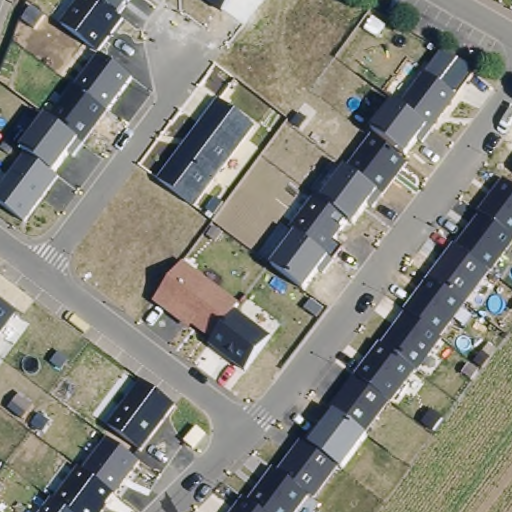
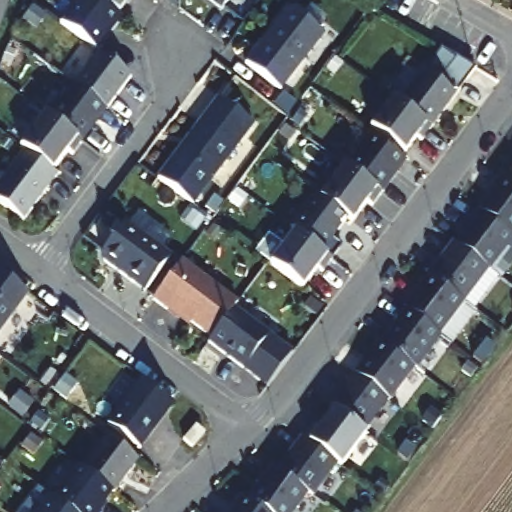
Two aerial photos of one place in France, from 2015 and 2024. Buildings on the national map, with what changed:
unchanged [(123,18),(98,52),(62,24),(79,0),(131,0),(119,15),(123,18)]
unchanged [(205,0),(230,0),(222,11),(205,0)]
new [(325,36),(281,90),(245,62),(289,6),(325,36)]
unchanged [(272,262),(295,229),(288,224),(310,195),(318,198),(320,194),(342,164),(347,166),(348,164),(370,134),(375,128),(370,125),(392,99),(400,104),(401,103),(423,71),(441,49),(476,70),(457,96),(422,144),(417,139),(404,154),(400,158),(407,164),(372,209),(367,203),(350,225),(347,222),(324,254),(328,257),(303,289),(272,262)]
unchanged [(72,160),(66,156),(53,173),(57,175),(23,222),(0,203),(0,184),(23,153),(20,146),(46,112),(53,119),(57,114),(99,55),(131,79),(72,160)]
unchanged [(217,98),(255,126),(193,207),(157,179),(217,98)]
unchanged [(315,499),(310,495),(297,512),(229,512),(240,497),(247,501),(272,467),(276,471),(298,439),(307,443),(333,412),(328,407),(352,376),(377,343),(402,308),(502,178),(512,185),(512,240),(342,466),(315,499)]
new [(107,264),(103,251),(127,219),(172,253),(144,290),(107,264)]
unchanged [(238,302),(232,309),(270,335),(243,372),(205,345),(208,341),(190,327),(187,329),(152,303),(182,262),(238,302)]
unchanged [(0,333),(0,303),(15,314),(0,333)]
unchanged [(141,451),(107,428),(141,382),(175,406),(141,451)]
unchanged [(48,499),(52,502),(77,467),(80,471),(104,438),(138,462),(115,494),(100,512),(39,512),(48,499)]

